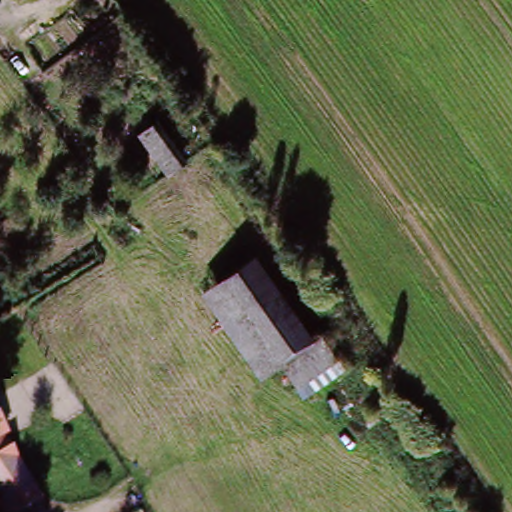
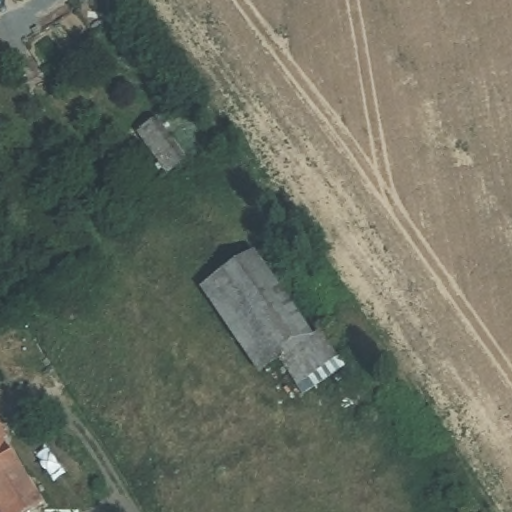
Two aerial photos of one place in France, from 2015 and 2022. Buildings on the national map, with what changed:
unchanged [(169,175),(142,135),(160,123),(188,162),(169,175)]
unchanged [(256,250),(303,319),(314,335),(281,357),(223,272),(256,250)]
unchanged [(269,365),(261,370),(204,285),(223,272),(281,357),(269,365)]
unchanged [(281,357),(314,335),(342,374),(293,405),(275,376),(288,367),(281,357)]
unchanged [(41,498),(22,512),(0,512),(0,426),(41,498)]

